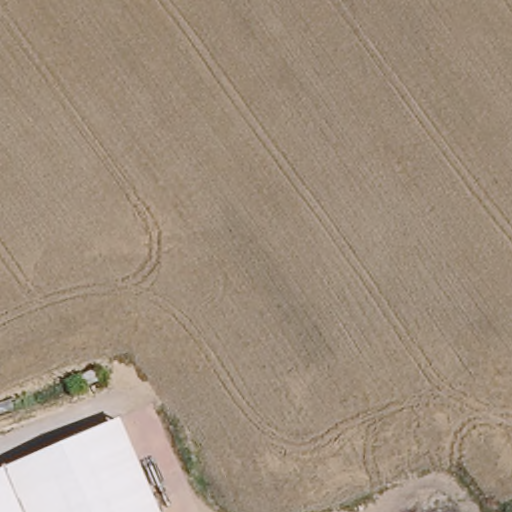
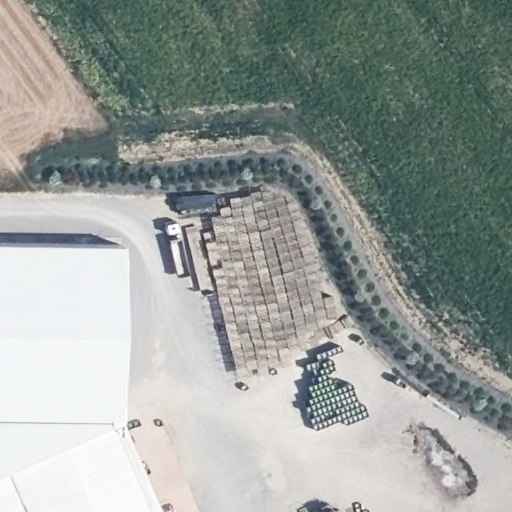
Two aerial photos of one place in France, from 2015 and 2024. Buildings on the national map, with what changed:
new [(117,422),(0,473),(0,241),(121,243),(117,422)]
unchanged [(117,422),(156,512),(0,512),(0,473),(117,422)]

